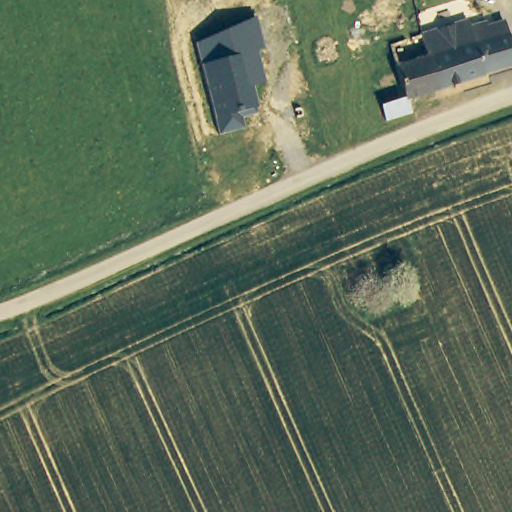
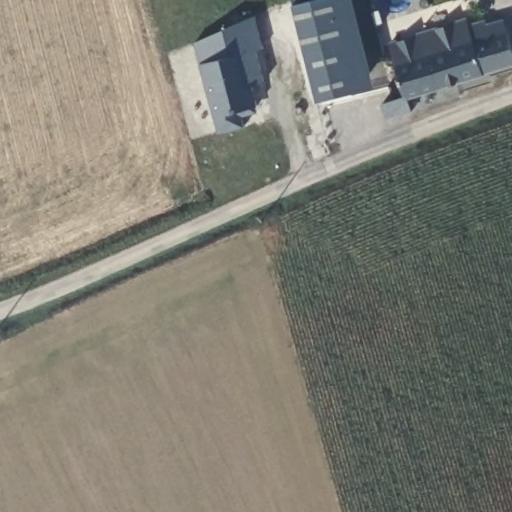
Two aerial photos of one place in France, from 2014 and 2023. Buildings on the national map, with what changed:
new [(320,102),(294,2),(303,0),(353,0),(375,87),(320,102)]
unchanged [(219,134),(195,44),(258,16),(267,48),(258,52),(267,82),(252,87),(259,113),(243,119),(245,128),(219,134)]
unchanged [(380,107),(403,99),(386,45),(424,32),(462,20),(465,26),(482,20),(483,25),(500,20),(504,31),(512,57),(512,62),(480,72),(479,75),(436,89),(406,99),(406,101),(409,112),(385,121),(380,107)]

